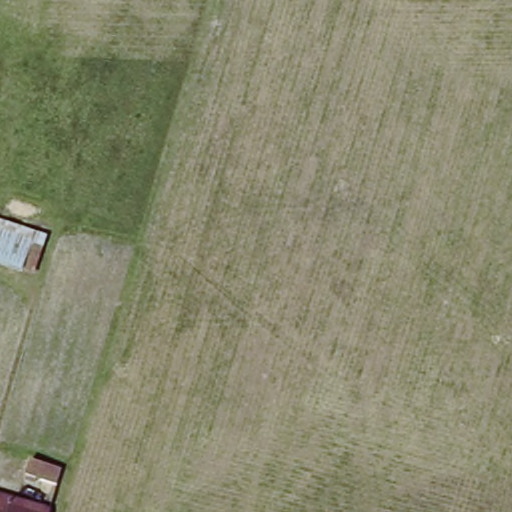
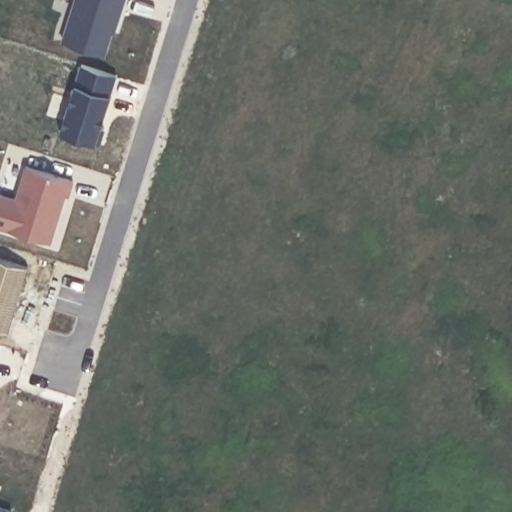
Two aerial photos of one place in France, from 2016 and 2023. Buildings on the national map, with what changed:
new [(109,31),(104,52),(60,40),(73,0),(121,0),(112,32),(109,31)]
new [(99,126),(105,129),(100,143),(59,131),(80,64),(115,75),(99,126)]
new [(52,244),(0,228),(0,193),(15,196),(24,165),(72,179),(52,244)]
demolished [(37,242),(27,272),(0,264),(0,230),(37,242)]
demolished [(62,470),(57,485),(27,475),(32,460),(62,470)]
demolished [(48,506),(47,508),(46,512),(0,512),(0,491),(48,506)]
new [(10,512),(0,512),(0,505),(12,508),(10,512)]

